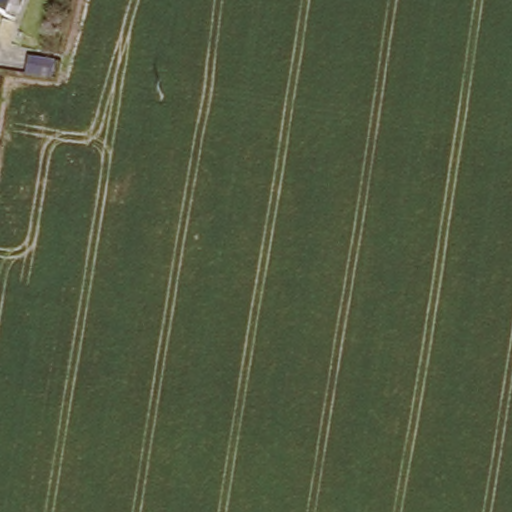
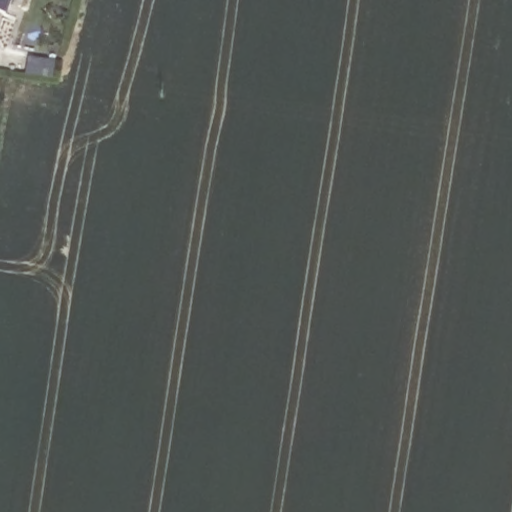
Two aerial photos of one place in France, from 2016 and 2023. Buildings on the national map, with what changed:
unchanged [(0,10),(0,0),(10,0),(7,11),(0,10)]
unchanged [(52,77),(27,72),(29,57),(55,62),(52,77)]

